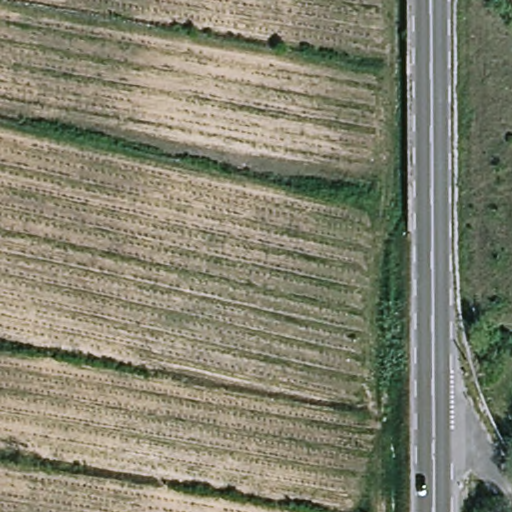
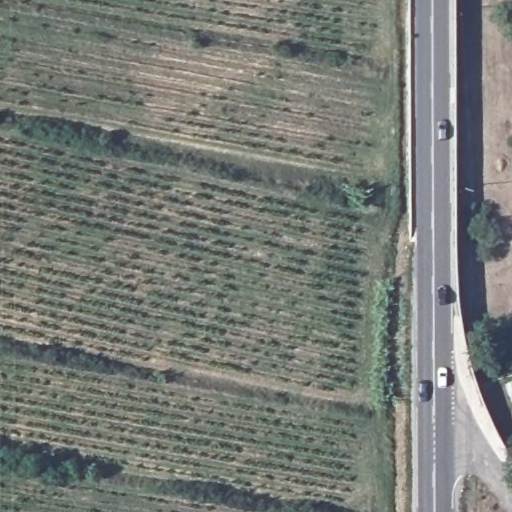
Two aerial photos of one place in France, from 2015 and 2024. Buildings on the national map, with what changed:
[]

